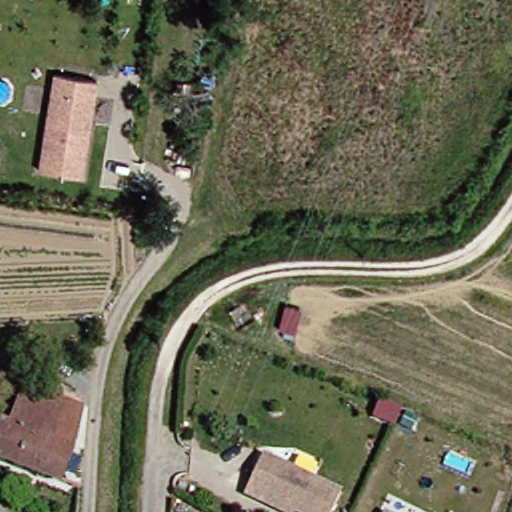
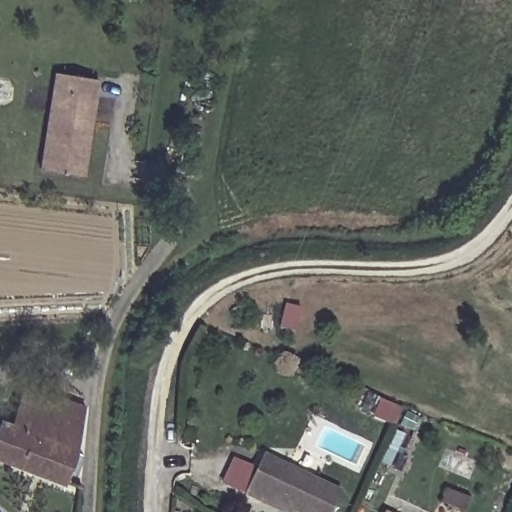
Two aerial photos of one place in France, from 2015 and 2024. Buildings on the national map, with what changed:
unchanged [(41,168),(56,72),(99,79),(96,95),(92,120),(84,175),(41,168)]
unchanged [(8,430),(18,385),(75,407),(65,453),(56,480),(0,457),(0,426),(8,430)]
unchanged [(246,495),(265,456),(342,493),(333,512),(283,512),(262,502),(246,495)]

